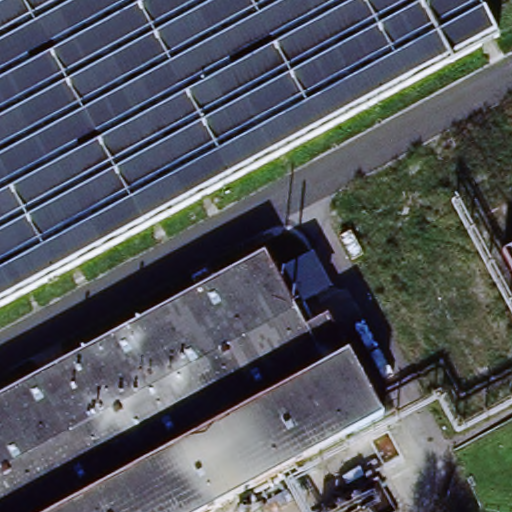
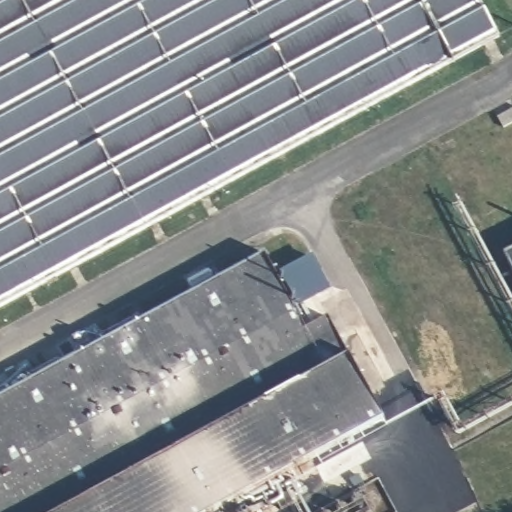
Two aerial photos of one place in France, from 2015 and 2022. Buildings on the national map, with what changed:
unchanged [(0,0),(480,0),(499,35),(0,303),(0,0)]
unchanged [(286,243),(326,319),(304,329),(265,255),(286,243)]
unchanged [(505,253),(512,250),(512,267),(505,253)]
unchanged [(326,319),(379,422),(211,512),(0,512),(0,397),(265,255),(304,329),(326,319)]
unchanged [(396,512),(310,512),(378,477),(396,512)]

